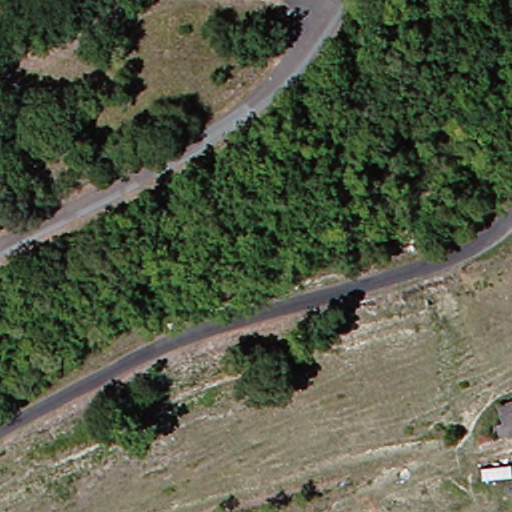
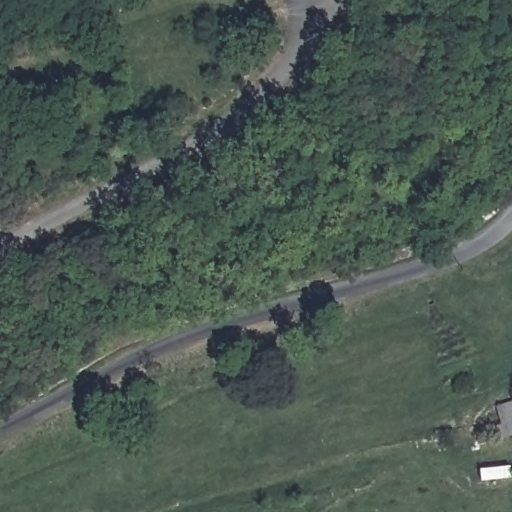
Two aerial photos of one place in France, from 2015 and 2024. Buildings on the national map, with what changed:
unchanged [(490,428),(500,425),(495,410),(512,404),(512,434),(492,440),(490,428)]

